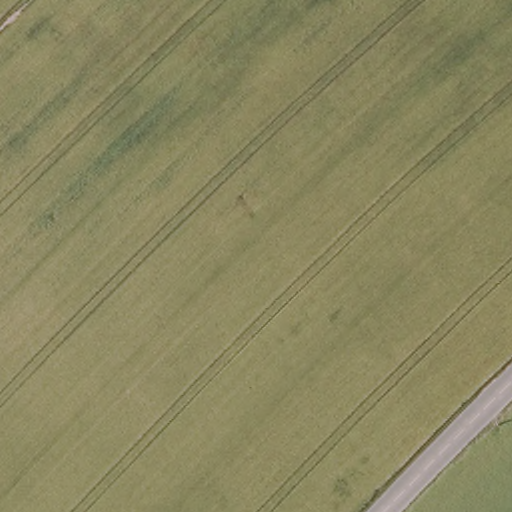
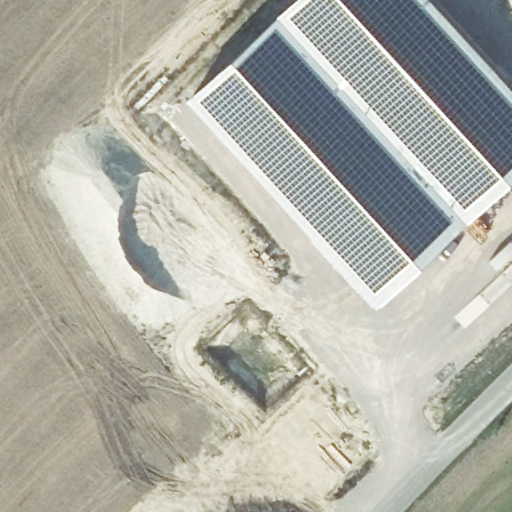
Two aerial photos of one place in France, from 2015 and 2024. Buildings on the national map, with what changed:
new [(437,0),(512,81),(512,177),(380,300),(189,96),(294,0),(437,0)]

